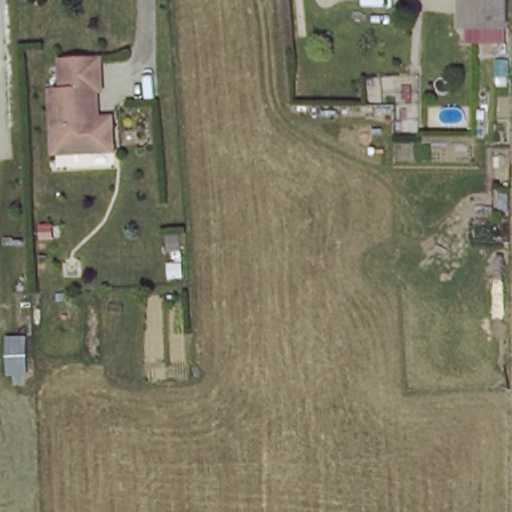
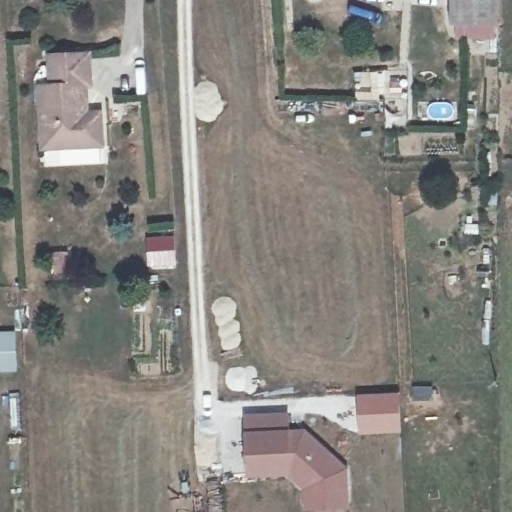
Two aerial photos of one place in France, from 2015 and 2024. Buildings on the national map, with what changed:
unchanged [(457,25),(456,0),(500,0),(500,24),(457,25)]
unchanged [(103,119),(104,142),(45,145),(43,83),(54,83),(53,53),(91,51),(93,82),(88,83),(89,111),(102,111),(103,119)]
new [(400,392),(402,432),(358,434),(356,393),(400,392)]
new [(302,436),(343,474),(344,493),(304,495),(304,492),(287,477),(247,479),(245,439),(302,436)]

